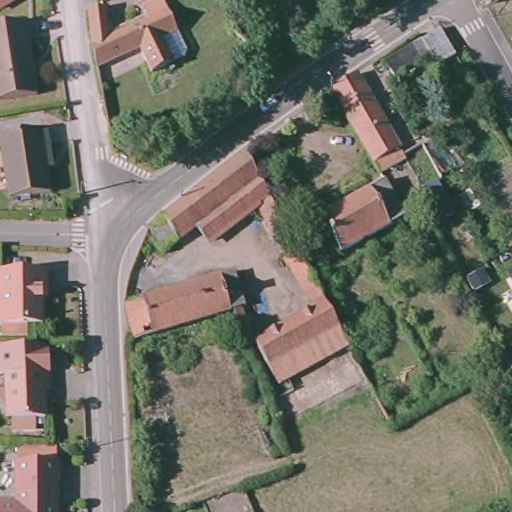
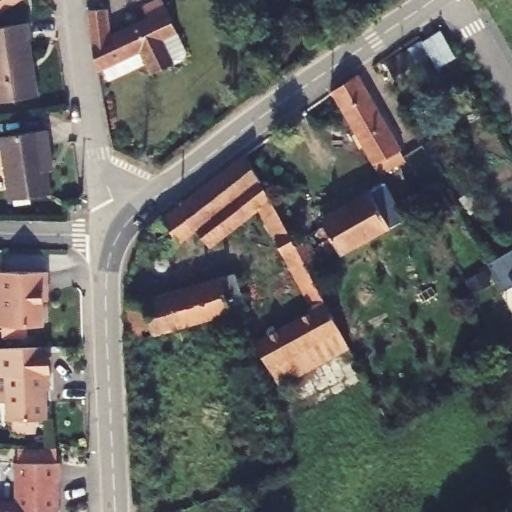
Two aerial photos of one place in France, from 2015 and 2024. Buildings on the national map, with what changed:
unchanged [(17,0),(20,4),(0,17),(0,0),(17,0)]
unchanged [(104,10),(105,37),(147,20),(142,9),(156,2),(162,14),(167,10),(177,35),(163,44),(173,66),(151,77),(138,51),(97,74),(88,12),(104,10)]
unchanged [(438,65),(430,51),(397,78),(387,67),(443,24),(444,26),(457,50),(438,65)]
unchanged [(28,25),(30,42),(38,99),(0,103),(0,29),(28,25)]
unchanged [(407,160),(382,175),(375,165),(332,95),(357,77),(401,149),(402,151),(407,160)]
unchanged [(42,130),(48,164),(40,165),(45,195),(3,204),(0,178),(0,138),(42,130)]
unchanged [(243,158),(270,209),(257,219),(216,250),(200,230),(168,254),(157,237),(155,232),(243,158)]
unchanged [(437,180),(457,214),(442,221),(425,190),(437,180)]
unchanged [(410,221),(342,260),(320,221),(387,181),(410,221)]
unchanged [(293,251),(306,242),(320,268),(307,276),(348,353),(279,390),(257,346),(313,312),(257,219),(270,209),(293,251)]
unchanged [(42,269),(44,288),(40,289),(42,325),(0,326),(0,271),(42,269)]
unchanged [(240,312),(133,340),(122,302),(227,271),(240,312)]
unchanged [(512,272),(512,283),(507,275),(512,272)]
unchanged [(13,433),(13,416),(7,418),(8,375),(0,375),(0,346),(50,345),(50,390),(47,390),(47,417),(37,417),(37,432),(13,433)]
unchanged [(18,464),(17,447),(59,447),(59,462),(18,464)]
unchanged [(15,503),(14,464),(59,462),(60,477),(53,478),(54,512),(0,512),(0,504),(15,503)]

